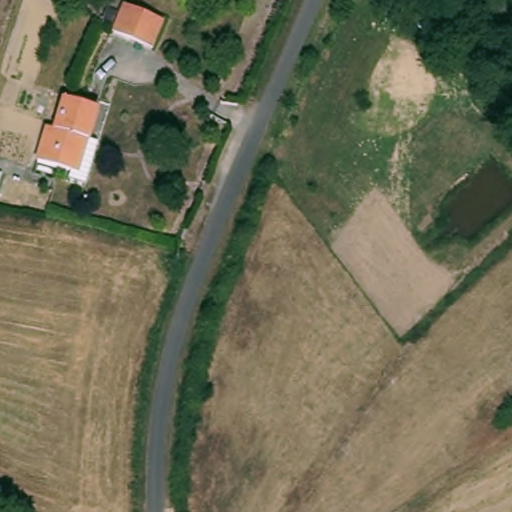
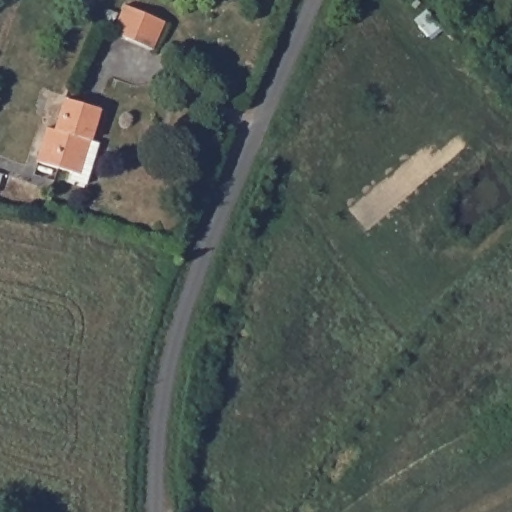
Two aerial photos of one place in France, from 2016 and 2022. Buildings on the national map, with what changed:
unchanged [(122,13),(162,27),(153,53),(113,38),(122,13)]
unchanged [(39,161),(47,130),(55,132),(64,97),(100,107),(91,140),(81,173),(74,171),(39,161)]

